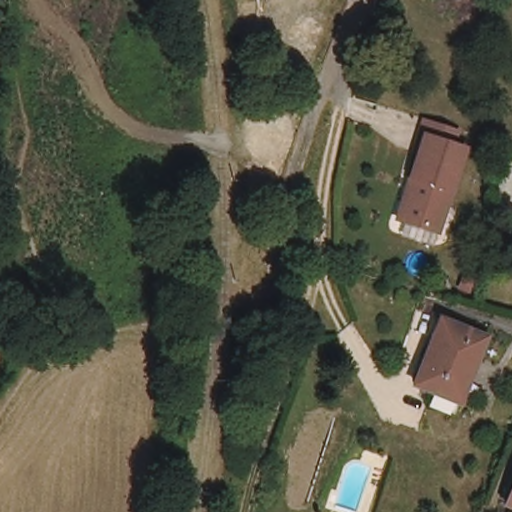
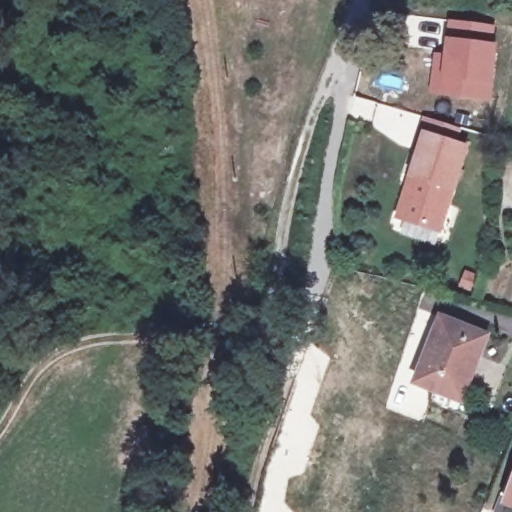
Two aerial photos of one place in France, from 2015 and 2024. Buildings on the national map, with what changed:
new [(445,37),(447,18),(495,24),(496,41),(491,100),(428,93),(433,51),(443,52),(445,37)]
unchanged [(413,183),(421,139),(423,124),(453,129),(450,143),(466,146),(452,233),(412,226),(406,225),(413,183)]
unchanged [(490,334),(460,411),(431,401),(435,390),(417,384),(442,316),(490,334)]
unchanged [(512,498),(512,504),(510,503),(512,498)]

